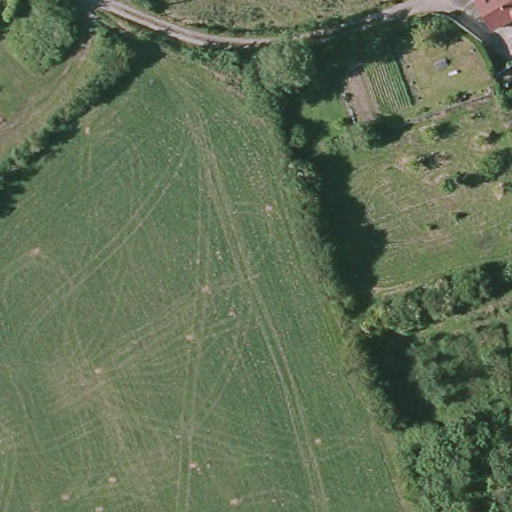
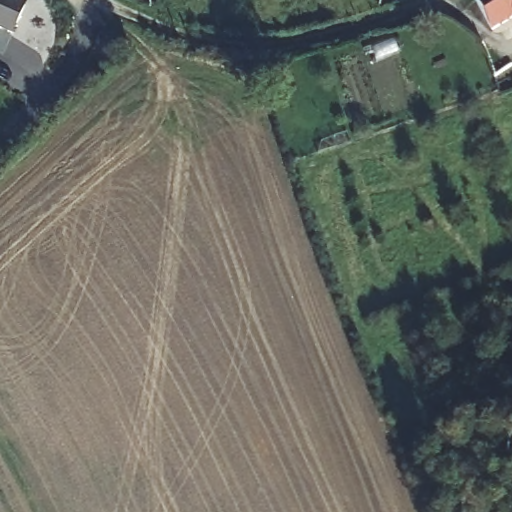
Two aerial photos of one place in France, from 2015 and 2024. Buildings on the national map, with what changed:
new [(12,34),(0,28),(0,0),(11,0),(25,6),(12,34)]
unchanged [(490,25),(476,0),(512,0),(512,13),(490,25)]

